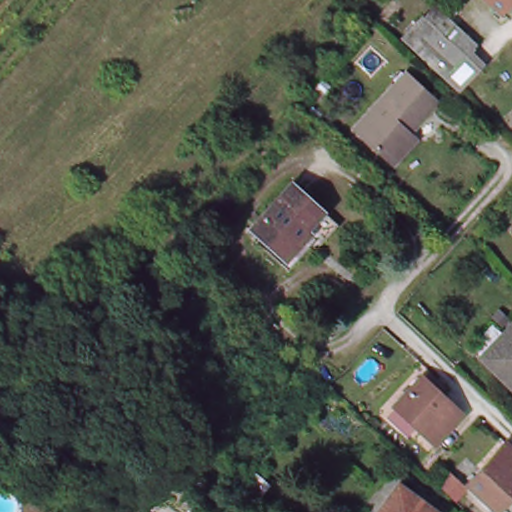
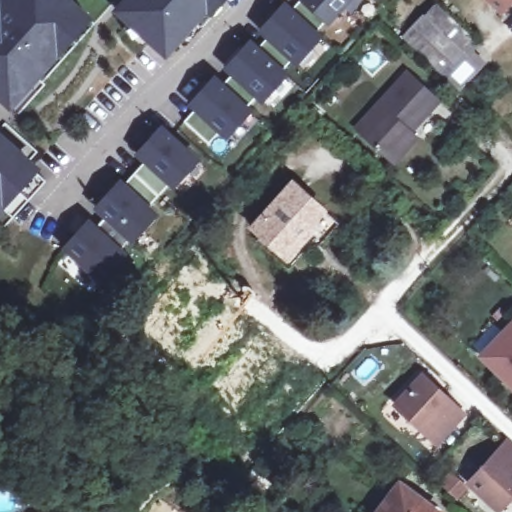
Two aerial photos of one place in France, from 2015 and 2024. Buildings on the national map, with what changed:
new [(10,108),(0,100),(0,6),(5,0),(66,0),(81,14),(48,51),(55,57),(29,87),(34,92),(15,113),(10,108)]
new [(111,30),(115,25),(103,14),(115,0),(212,0),(207,5),(202,0),(181,24),(187,28),(169,49),(163,44),(152,57),(137,44),(132,49),(111,30)]
new [(302,0),(345,0),(325,22),(324,21),(312,34),(290,14),(302,0)]
unchanged [(502,10),(491,0),(511,0),(502,10)]
new [(268,39),(261,33),(284,8),(290,14),(312,34),(317,38),(295,63),(292,61),(280,74),(256,52),(268,39)]
unchanged [(412,38),(440,13),(484,60),(459,87),(412,38)]
new [(232,75),(227,71),(250,46),(256,52),(280,74),(284,77),(262,102),(257,98),(245,110),(221,89),(232,75)]
unchanged [(437,102),(411,132),(418,139),(394,166),(355,131),(405,74),(437,102)]
new [(195,110),(191,107),(214,82),(221,89),(245,110),(248,113),(225,138),(220,133),(209,146),(184,124),(195,110)]
new [(145,163),(138,156),(160,131),(195,162),(173,187),(170,185),(159,197),(134,175),(145,163)]
new [(35,171),(0,209),(0,139),(27,164),(35,171)]
new [(120,185),(123,188),(134,175),(159,197),(147,210),(155,216),(132,241),(97,210),(120,185)]
unchanged [(324,209),(307,227),(311,230),(287,258),(253,228),(294,182),(324,209)]
new [(88,225),(95,231),(106,219),(130,240),(119,253),(122,256),(100,282),(65,250),(88,225)]
unchanged [(484,357),(512,326),(512,384),(484,357)]
unchanged [(467,414),(439,444),(397,406),(426,377),(467,414)]
unchanged [(471,483),(510,441),(512,443),(512,499),(502,511),(471,483)]
unchanged [(379,512),(401,483),(439,512),(379,512)]

